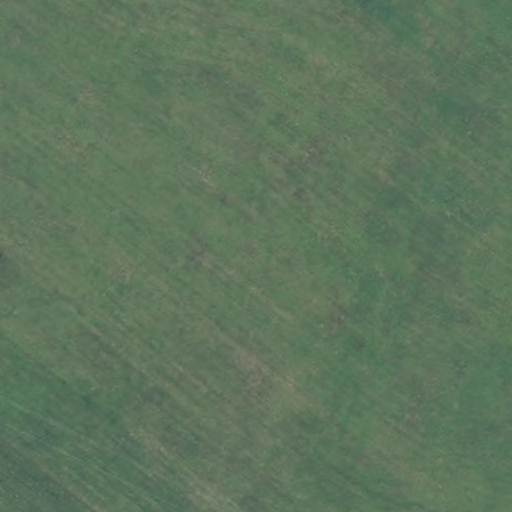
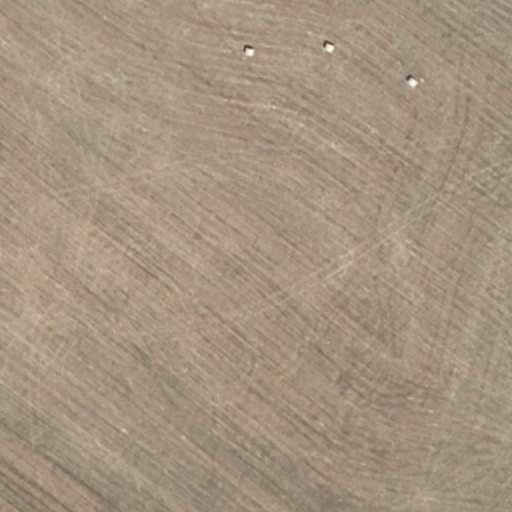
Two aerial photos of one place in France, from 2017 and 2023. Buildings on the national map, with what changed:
[]

